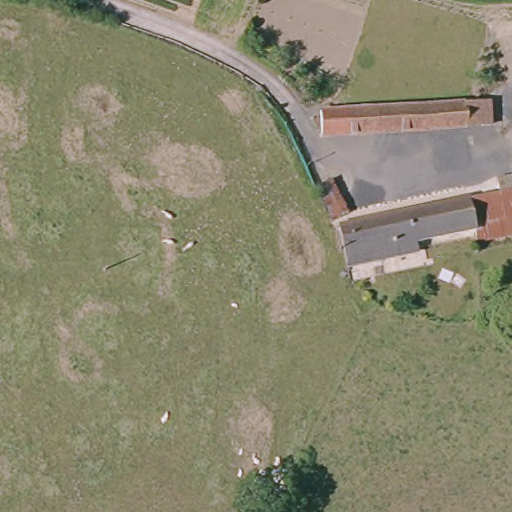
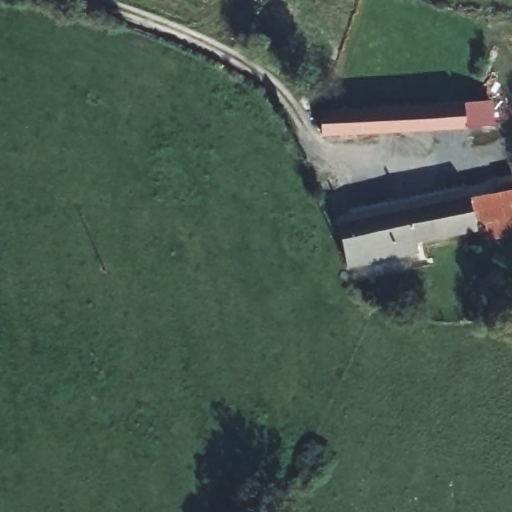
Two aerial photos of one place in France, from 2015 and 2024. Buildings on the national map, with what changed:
unchanged [(358,110),(457,105),(457,132),(331,139),(330,111),(358,110)]
unchanged [(333,172),(352,205),(331,217),(312,183),(333,172)]
unchanged [(512,195),(512,237),(488,241),(486,229),(350,251),(336,225),(512,195)]

